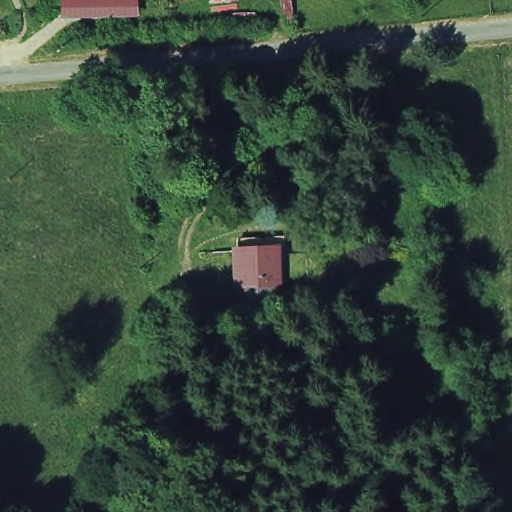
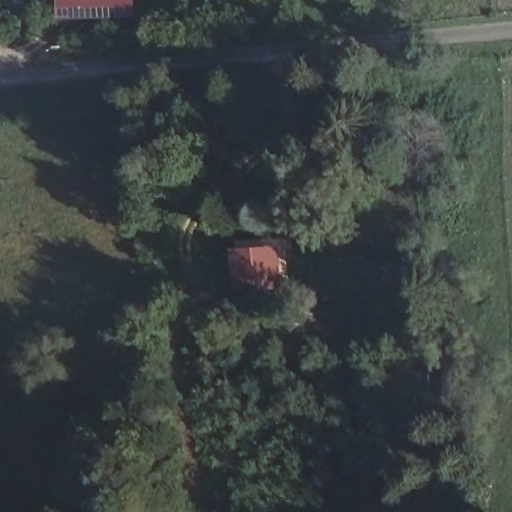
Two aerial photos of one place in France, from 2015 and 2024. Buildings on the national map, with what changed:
unchanged [(139,0),(141,16),(61,19),(61,0),(139,0)]
unchanged [(236,281),(237,247),(266,247),(275,247),(275,281),(272,281),(236,281)]

